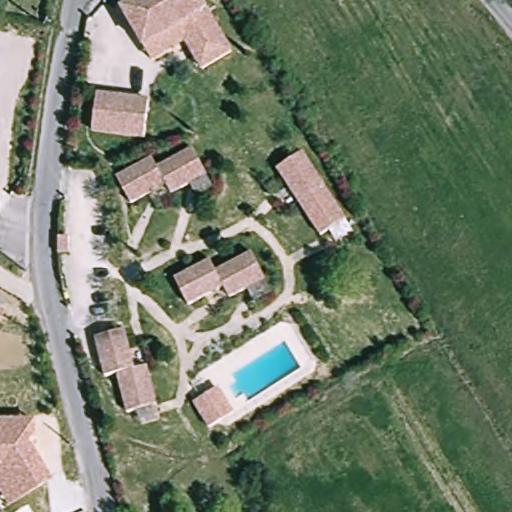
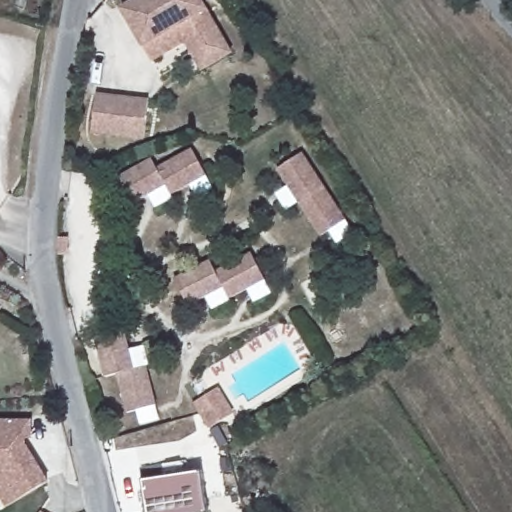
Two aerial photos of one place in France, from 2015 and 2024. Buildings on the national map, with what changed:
unchanged [(125,10),(143,0),(203,0),(211,12),(147,48),(125,10)]
unchanged [(211,12),(235,55),(205,72),(189,43),(155,62),(147,48),(211,12)]
unchanged [(145,139),(93,132),(98,95),(150,102),(145,139)]
unchanged [(188,149),(204,175),(170,196),(163,185),(154,170),(188,149)]
unchanged [(277,170),(302,154),(324,188),(298,204),(277,170)]
unchanged [(147,159),(154,170),(163,185),(130,206),(113,180),(147,159)]
unchanged [(345,222),(320,238),(298,204),(324,188),(345,222)]
unchanged [(216,272),(252,254),(266,281),(230,299),(225,288),(216,272)]
unchanged [(211,261),(216,272),(225,288),(189,306),(175,279),(211,261)]
unchanged [(2,317),(0,319),(0,316),(2,317)]
unchanged [(97,340),(127,334),(135,373),(120,376),(117,377),(105,379),(97,340)]
unchanged [(147,371),(155,410),(125,416),(117,377),(120,376),(135,373),(147,371)]
unchanged [(189,402),(202,394),(218,420),(205,428),(189,402)]
unchanged [(25,444),(49,480),(8,507),(0,490),(0,419),(34,419),(35,438),(25,436),(25,444)]
new [(141,481),(141,477),(156,474),(157,478),(186,474),(186,469),(200,467),(201,472),(207,512),(145,512),(141,481)]

